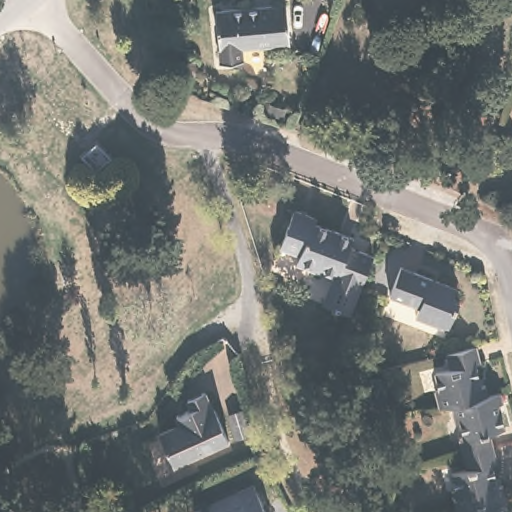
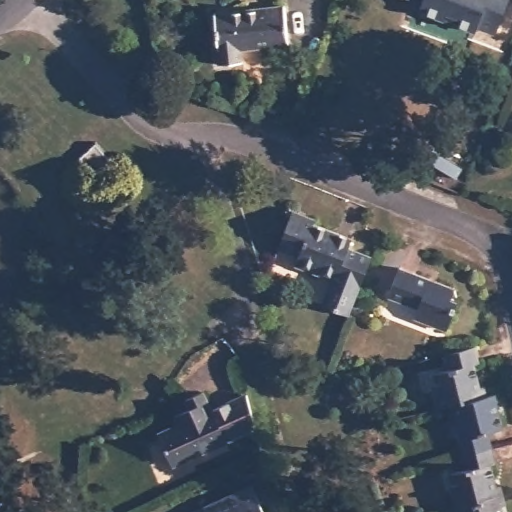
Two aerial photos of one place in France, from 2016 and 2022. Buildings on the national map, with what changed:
unchanged [(243,45),(244,56),(224,57),(219,6),(283,0),(288,0),(292,39),(243,45)]
new [(477,27),(475,32),(419,12),(424,0),(508,0),(494,35),(477,27)]
unchanged [(109,158),(94,172),(79,157),(94,142),(109,158)]
unchanged [(319,217),(318,222),(356,237),(352,247),(376,255),(353,313),(325,303),(335,277),(299,263),(303,254),(282,246),(297,209),(319,217)]
unchanged [(459,287),(456,297),(462,299),(450,327),(419,315),(423,306),(394,294),(404,266),(459,287)]
unchanged [(492,362),(489,363),(494,386),(498,385),(501,395),(512,392),(512,405),(511,405),(512,409),(512,428),(501,431),(509,461),(505,462),(511,486),(512,485),(512,512),(471,512),(465,490),(469,488),(466,472),(479,468),(464,404),(453,407),(448,389),(452,388),(448,372),(463,368),(459,352),(489,345),(492,362)]
unchanged [(215,413),(217,413),(232,443),(177,468),(163,437),(184,427),(180,418),(194,412),(190,402),(207,396),(215,413)]
unchanged [(253,437),(239,441),(232,418),(247,414),(253,437)]
unchanged [(209,505),(242,489),(250,508),(264,502),(269,512),(212,512),(209,505)]

